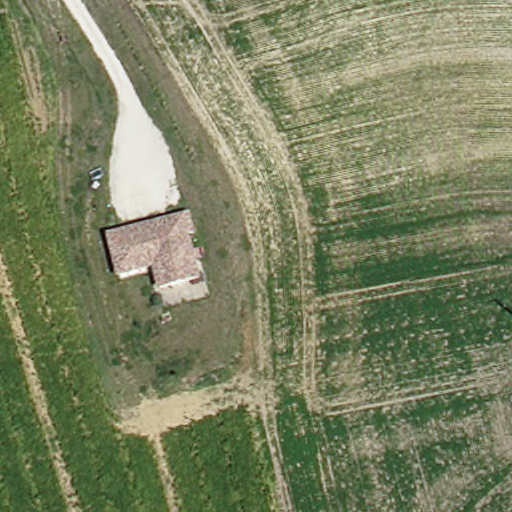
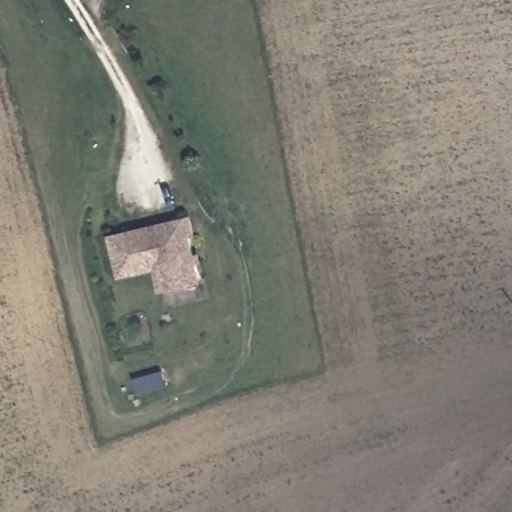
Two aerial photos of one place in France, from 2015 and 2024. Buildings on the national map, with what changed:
unchanged [(159,289),(153,267),(118,276),(109,236),(189,217),(193,235),(188,237),(199,280),(159,289)]

